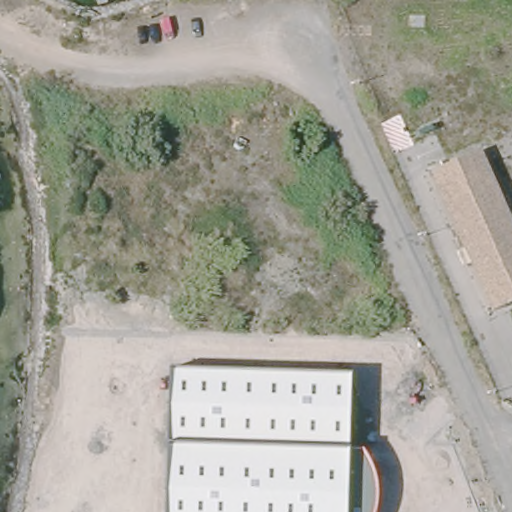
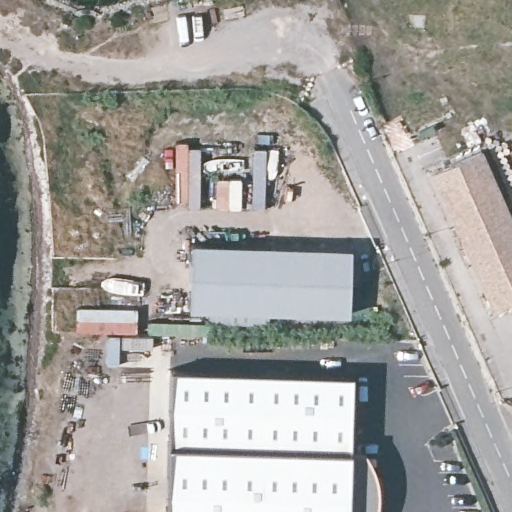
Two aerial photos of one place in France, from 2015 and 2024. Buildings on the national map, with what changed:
unchanged [(486,148),(512,218),(512,300),(489,309),(467,249),(436,166),(486,148)]
new [(193,244),(351,248),(349,315),(191,311),(193,244)]
new [(76,331),(76,306),(138,307),(137,332),(76,331)]
unchanged [(350,449),(364,450),(369,459),(374,471),(378,487),(378,505),(376,512),(169,512),(172,369),(351,375),(350,449)]

